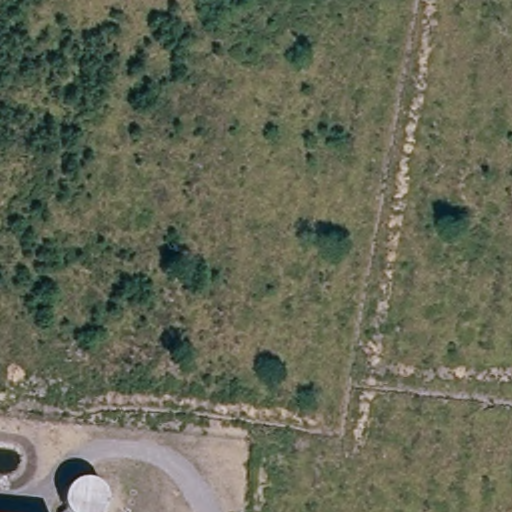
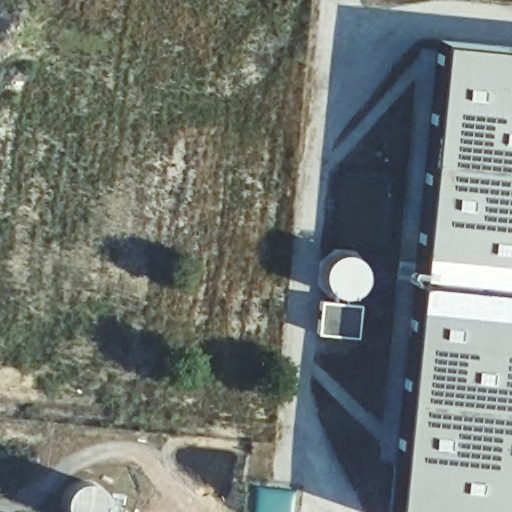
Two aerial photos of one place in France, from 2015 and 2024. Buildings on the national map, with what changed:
new [(404,418),(417,268),(441,40),(512,46),(512,512),(393,512),(404,418)]
new [(318,298),(360,302),(357,337),(316,335),(318,298)]

